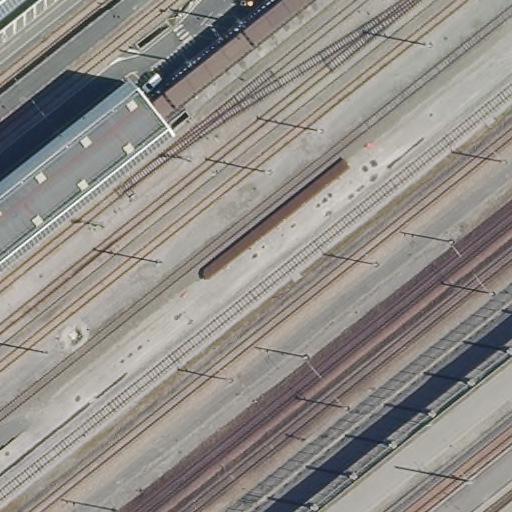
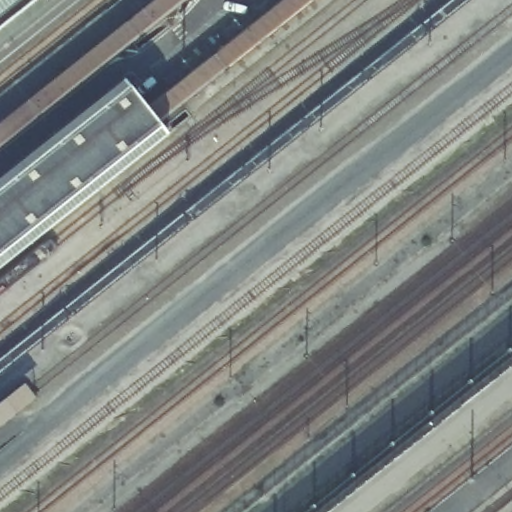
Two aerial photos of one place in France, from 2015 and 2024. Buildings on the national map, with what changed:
unchanged [(0,22),(0,0),(27,0),(0,22)]
unchanged [(172,131),(0,266),(0,178),(127,76),(172,131)]

